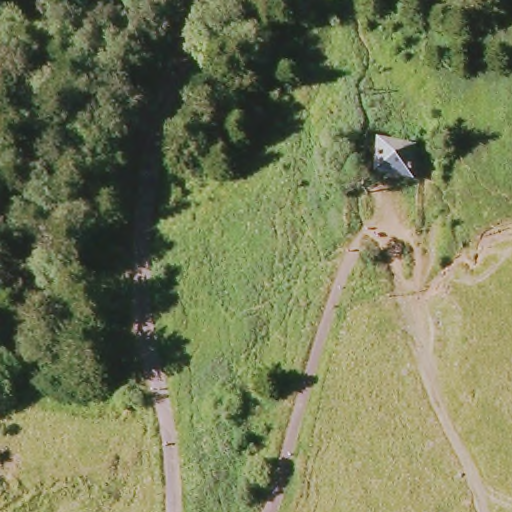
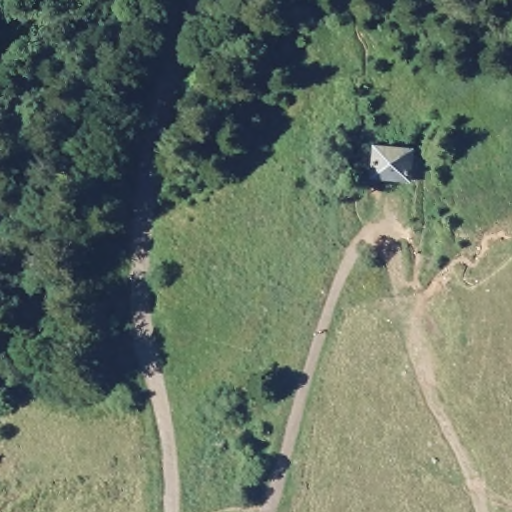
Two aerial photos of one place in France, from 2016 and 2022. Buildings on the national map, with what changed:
unchanged [(424,158),(421,192),(378,187),(382,151),(424,158)]

